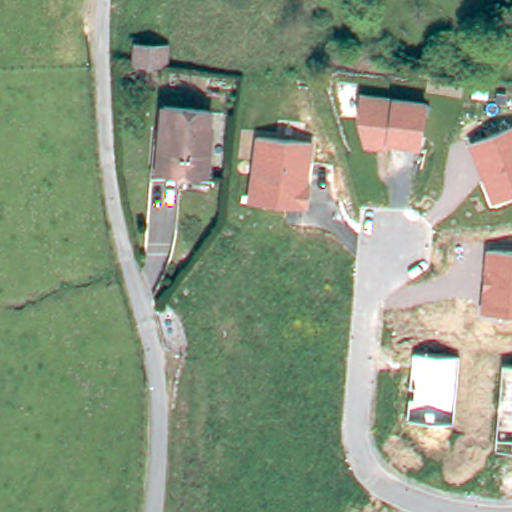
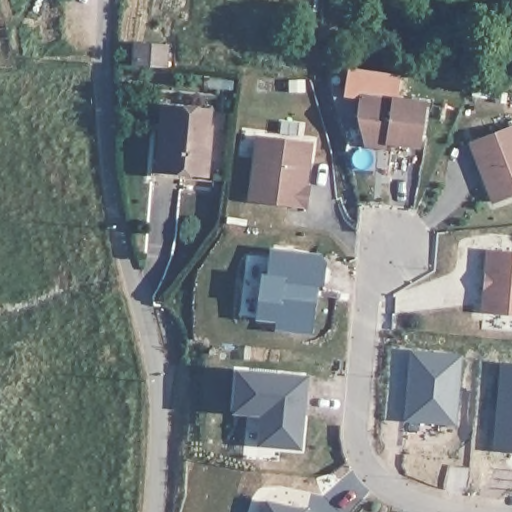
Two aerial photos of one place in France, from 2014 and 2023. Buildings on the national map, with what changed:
unchanged [(135,66),(136,45),(167,47),(165,68),(135,66)]
unchanged [(426,100),(420,149),(367,147),(355,120),(360,90),(426,100)]
unchanged [(165,142),(168,106),(215,111),(212,142),(214,142),(211,175),(167,171),(162,171),(165,142)]
unchanged [(512,196),(493,205),(469,141),(512,128),(512,196)]
unchanged [(315,144),(312,184),(305,209),(249,200),(257,137),(315,144)]
new [(261,275),(267,276),(270,250),(318,256),(324,263),(321,284),(310,283),(309,294),(314,295),(309,332),(275,328),(276,320),(256,317),(261,275)]
unchanged [(512,318),(480,313),(487,250),(512,252),(512,318)]
unchanged [(460,359),(452,424),(407,420),(411,354),(460,359)]
unchanged [(512,454),(495,453),(502,363),(512,365),(512,454)]
new [(262,414),(233,411),(236,371),(305,378),(302,400),(299,400),(297,415),(301,415),(298,447),(275,446),(259,444),(260,424),(262,414)]
new [(262,500),(305,510),(305,512),(260,512),(262,500)]

